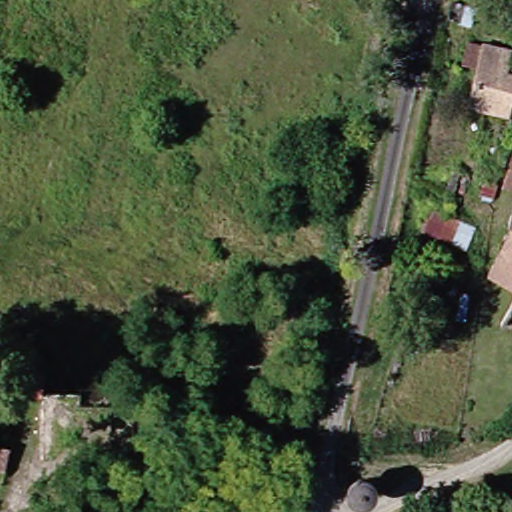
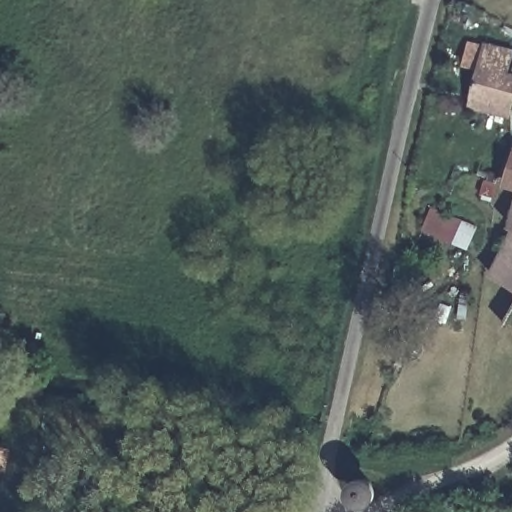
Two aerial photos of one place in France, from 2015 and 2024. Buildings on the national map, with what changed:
unchanged [(495,65),(505,67),(512,47),(512,74),(503,99),(461,87),(467,60),(452,55),(457,35),(474,39),(502,46),(495,65)]
unchanged [(509,143),(512,143),(512,181),(497,175),(505,142),(509,143)]
unchanged [(481,268),(498,214),(508,186),(512,188),(512,291),(481,268)]
unchanged [(467,224),(457,249),(408,228),(420,203),(467,224)]
unchanged [(124,390),(123,403),(107,400),(109,387),(124,390)]
unchanged [(10,471),(0,468),(0,444),(15,447),(10,471)]

